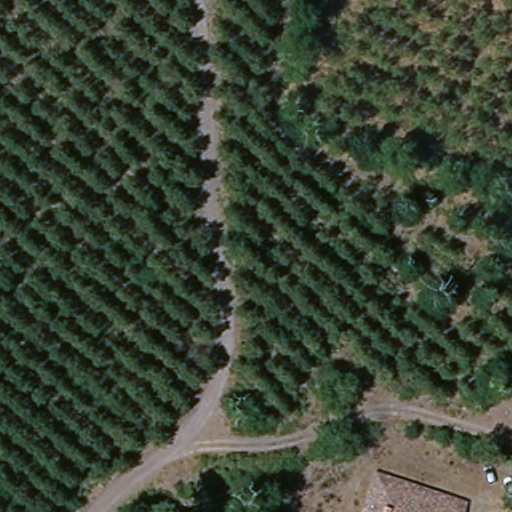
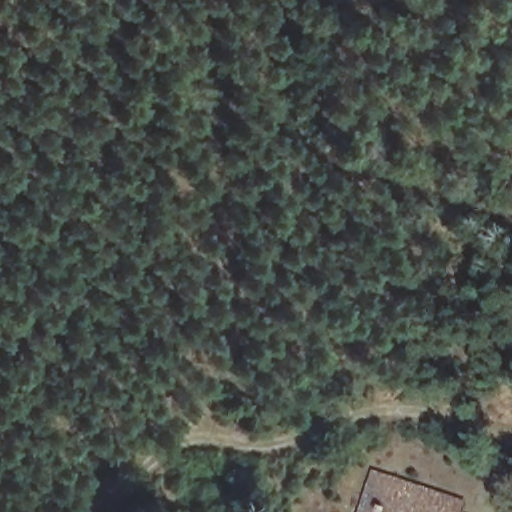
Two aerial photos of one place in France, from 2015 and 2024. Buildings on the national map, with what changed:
unchanged [(461,512),(365,512),(379,475),(462,508),(461,512)]

